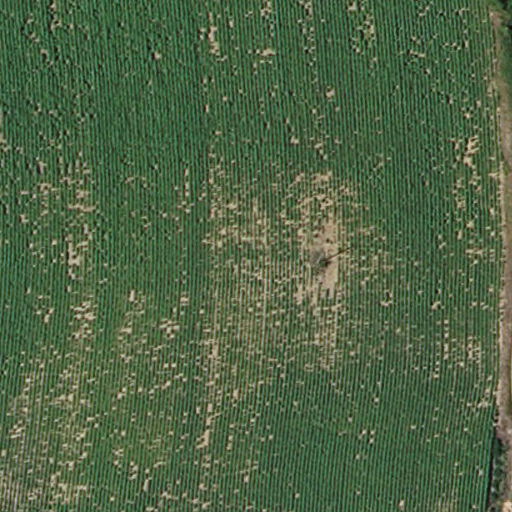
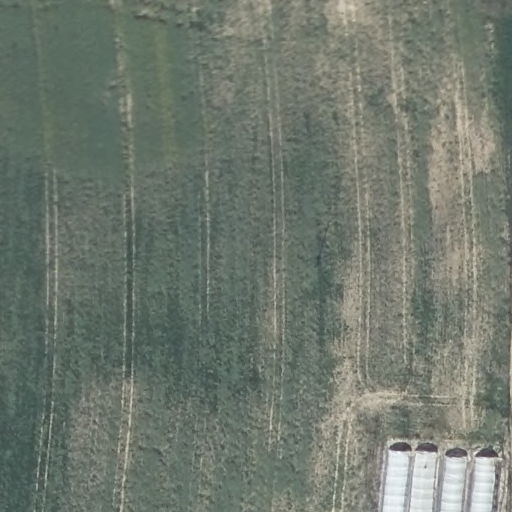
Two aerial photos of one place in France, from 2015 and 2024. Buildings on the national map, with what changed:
new [(501,457),(495,512),(387,512),(393,448),(501,457)]

